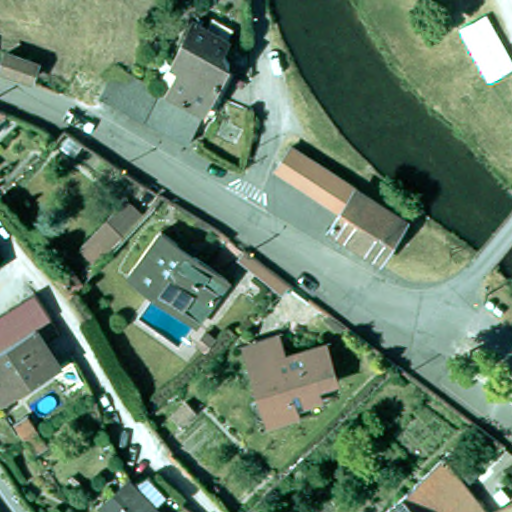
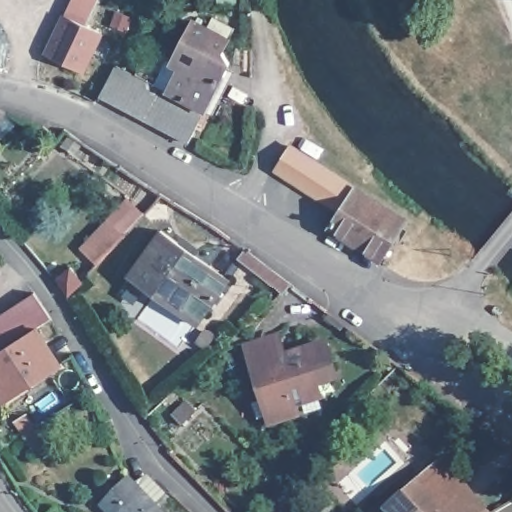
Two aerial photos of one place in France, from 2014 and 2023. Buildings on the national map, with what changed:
new [(102,34),(83,74),(43,55),(70,0),(86,0),(95,4),(86,25),(102,34)]
new [(86,0),(97,0),(95,4),(86,0)]
unchanged [(144,126),(99,103),(114,74),(115,70),(159,91),(169,96),(179,71),(170,66),(190,23),(226,42),(220,54),(226,69),(205,114),(204,116),(187,147),(144,126)]
demolished [(7,71),(15,54),(44,66),(42,67),(37,83),(7,71)]
unchanged [(14,116),(1,128),(0,128),(0,110),(14,116)]
unchanged [(280,175),(295,151),(359,192),(344,215),(280,175)]
unchanged [(359,192),(410,224),(383,265),(332,233),(344,215),(359,192)]
unchanged [(100,272),(85,258),(132,206),(147,220),(100,272)]
unchanged [(230,287),(197,330),(130,280),(162,238),(230,287)]
unchanged [(62,286),(72,275),(85,289),(72,303),(62,286)]
unchanged [(35,293),(51,317),(34,329),(0,351),(0,315),(35,293)]
unchanged [(4,403),(0,397),(0,351),(34,329),(57,366),(4,403)]
unchanged [(290,402),(292,410),(268,417),(247,346),(270,339),(277,360),(318,347),(324,367),(327,379),(310,384),(314,395),(290,402)]
unchanged [(38,466),(25,447),(15,431),(27,422),(39,438),(52,456),(38,466)]
unchanged [(474,512),(409,512),(399,488),(470,456),(491,503),(474,512)]
unchanged [(156,512),(103,512),(128,489),(132,494),(150,485),(165,503),(156,512)]

